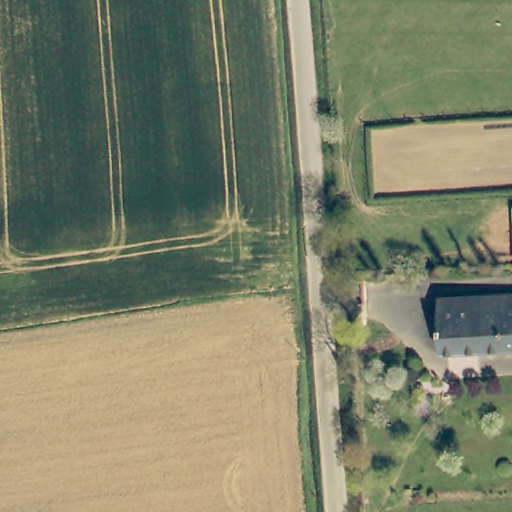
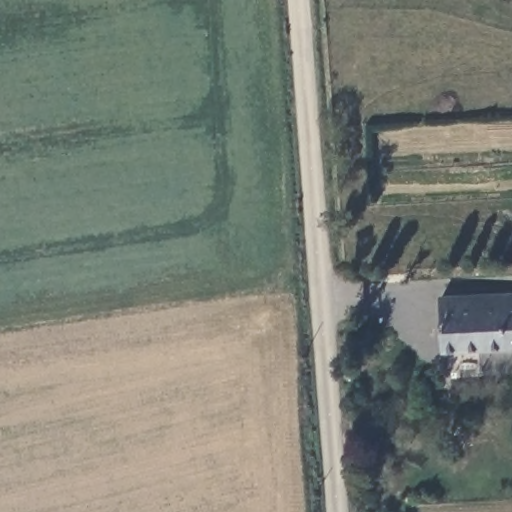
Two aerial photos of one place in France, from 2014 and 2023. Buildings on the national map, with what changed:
unchanged [(512,291),(512,351),(443,351),(443,292),(512,291)]

